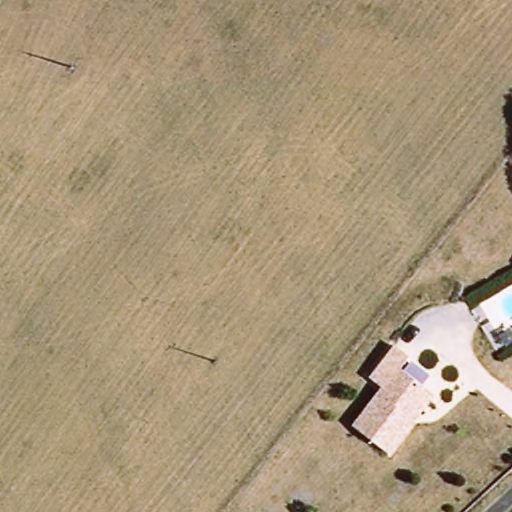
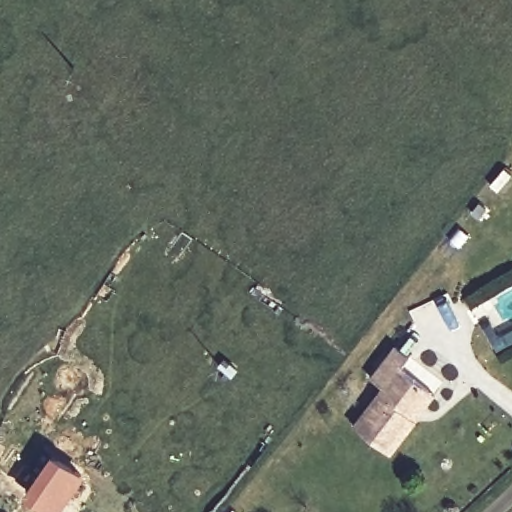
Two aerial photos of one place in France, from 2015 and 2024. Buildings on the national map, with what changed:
unchanged [(387,452),(352,425),(382,384),(370,374),(393,346),(404,356),(397,365),(425,388),(432,395),(411,420),(387,452)]
new [(48,512),(22,496),(52,451),(87,474),(61,512),(48,512)]

